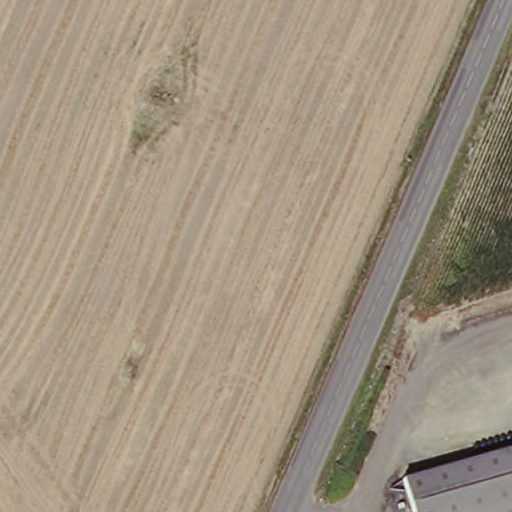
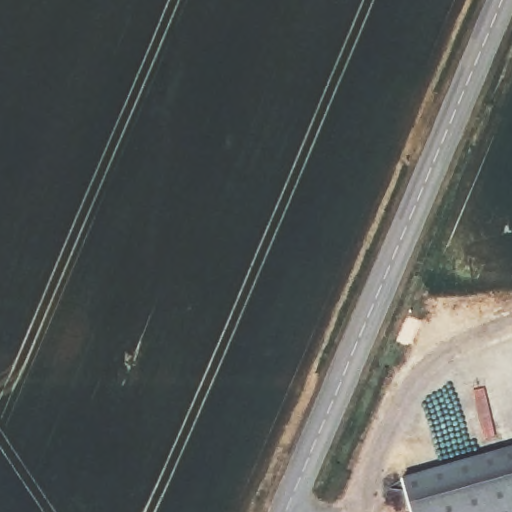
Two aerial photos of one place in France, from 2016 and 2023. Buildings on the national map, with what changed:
unchanged [(512,445),(512,512),(415,512),(405,477),(512,445)]

